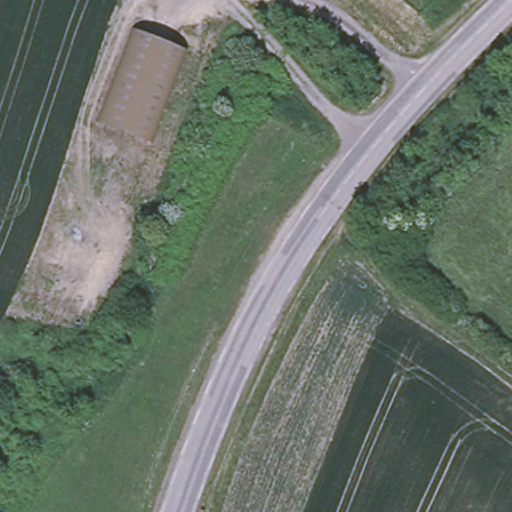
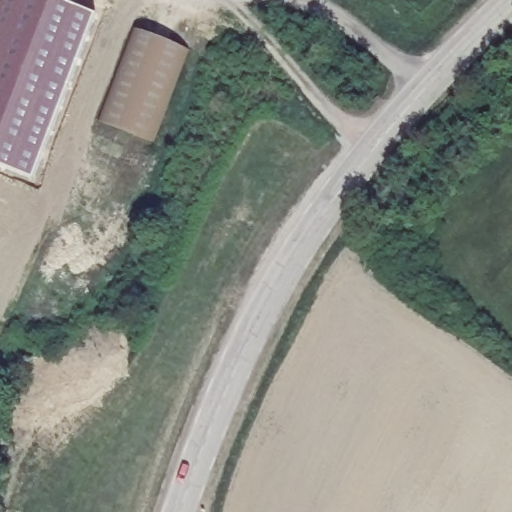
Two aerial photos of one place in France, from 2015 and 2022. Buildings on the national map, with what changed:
new [(93,11),(33,177),(0,165),(0,0),(62,0),(93,11)]
unchanged [(158,141),(101,120),(135,29),(195,52),(158,141)]

